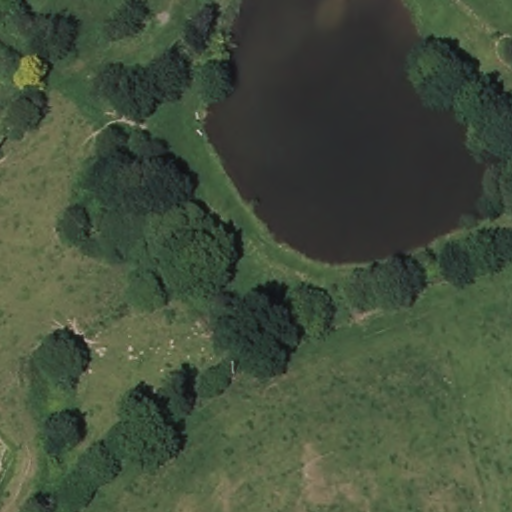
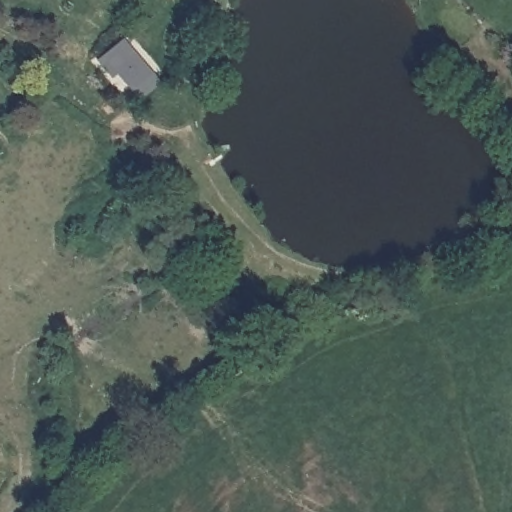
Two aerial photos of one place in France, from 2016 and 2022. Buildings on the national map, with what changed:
new [(137,99),(117,75),(111,78),(97,61),(124,39),(158,82),(137,99)]

